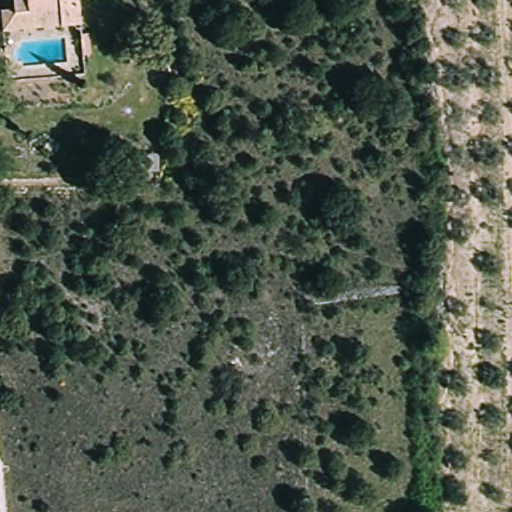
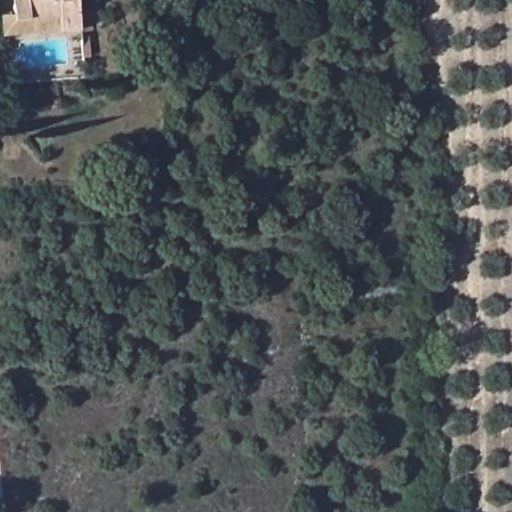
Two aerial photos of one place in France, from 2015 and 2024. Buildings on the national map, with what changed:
unchanged [(1,0),(74,0),(77,24),(4,30),(1,0)]

